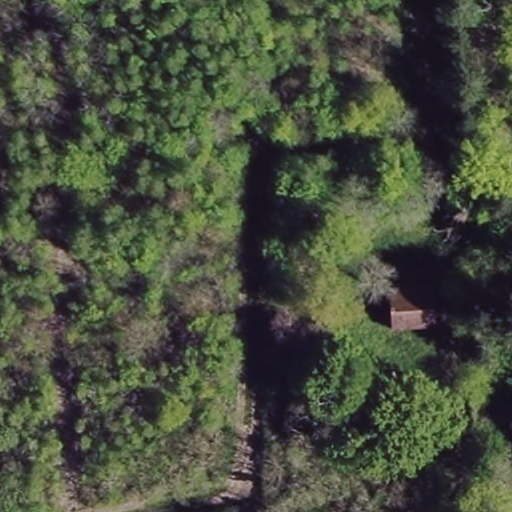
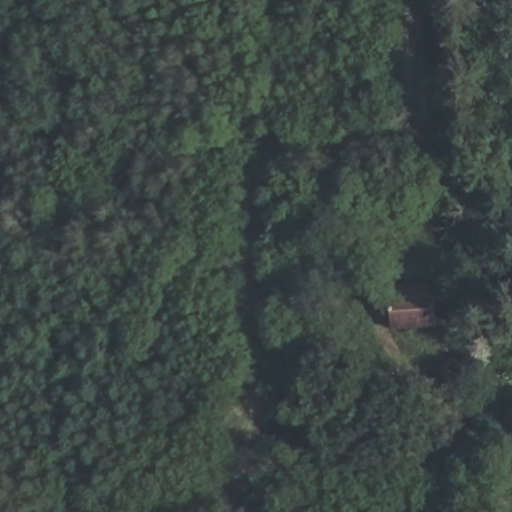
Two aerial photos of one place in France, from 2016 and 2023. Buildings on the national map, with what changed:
unchanged [(432,285),(437,327),(392,331),(388,289),(432,285)]

